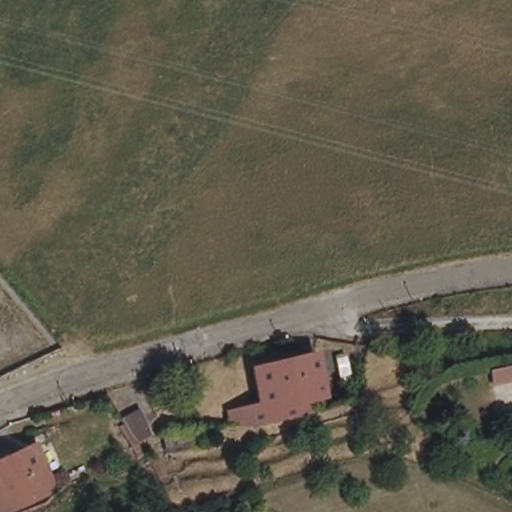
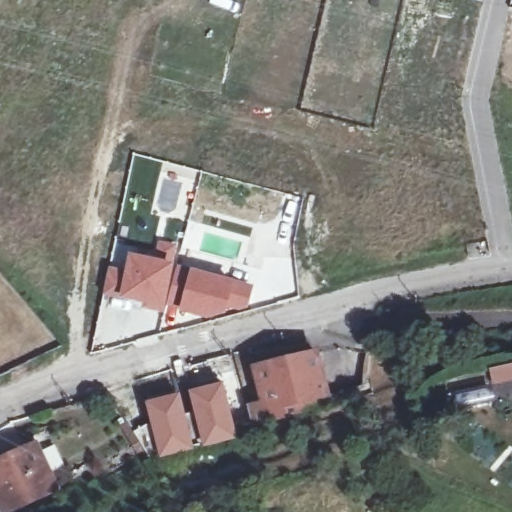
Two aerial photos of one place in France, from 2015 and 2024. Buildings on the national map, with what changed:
new [(108,265),(124,268),(127,252),(152,257),(157,239),(177,243),(174,263),(189,268),(177,311),(175,317),(140,308),(140,305),(102,297),(108,265)]
new [(189,268),(255,284),(248,308),(206,318),(197,317),(177,311),(189,268)]
unchanged [(317,353),(330,404),(295,414),(291,404),(300,401),(298,396),(270,404),(260,368),(317,353)]
new [(223,381),(237,438),(202,447),(187,390),(223,381)]
new [(180,392),(193,449),(157,458),(144,400),(180,392)]
unchanged [(134,437),(124,417),(142,408),(149,422),(152,436),(137,443),(134,437)]
unchanged [(55,488),(0,512),(0,511),(0,457),(35,441),(55,488)]

